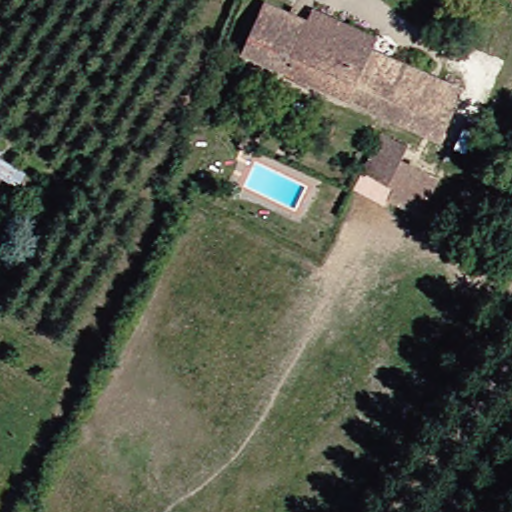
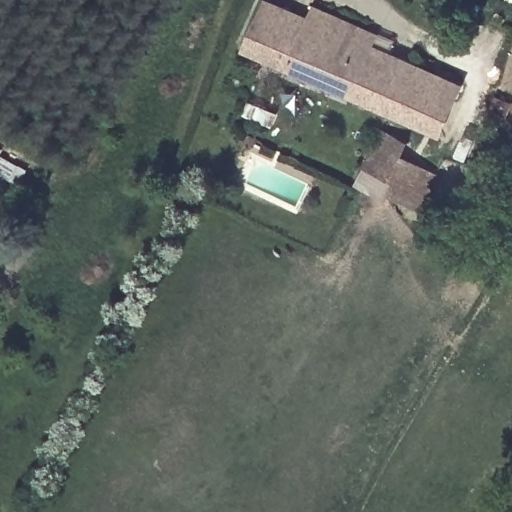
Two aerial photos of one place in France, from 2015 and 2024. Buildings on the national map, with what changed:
unchanged [(276,3),(319,24),(325,12),(382,37),(377,49),(442,76),(420,129),(254,57),(276,3)]
unchanged [(442,76),(468,86),(448,140),(420,129),(442,76)]
unchanged [(34,172),(22,188),(2,167),(0,169),(0,147),(34,172)]
unchanged [(387,149),(412,159),(395,198),(371,187),(387,149)]
unchanged [(395,198),(412,159),(450,176),(432,218),(395,198)]

